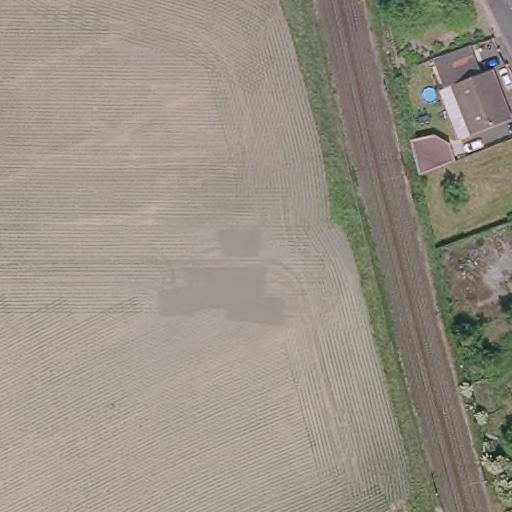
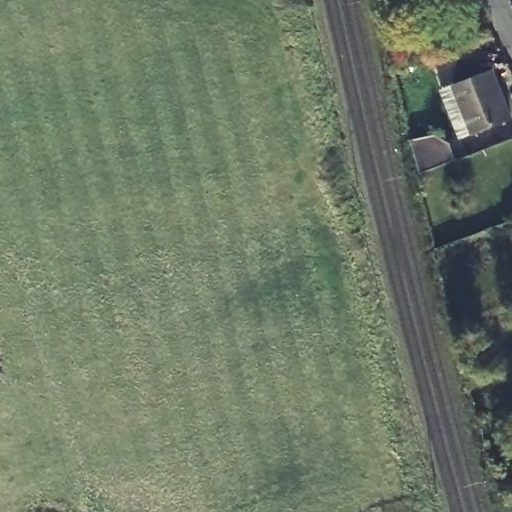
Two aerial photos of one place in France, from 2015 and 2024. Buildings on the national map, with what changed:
unchanged [(446,88),(440,74),(476,57),(482,72),(492,68),(512,115),(461,136),(451,114),(441,90),(446,88)]
unchanged [(509,471),(495,455),(512,442),(512,469),(509,471)]

